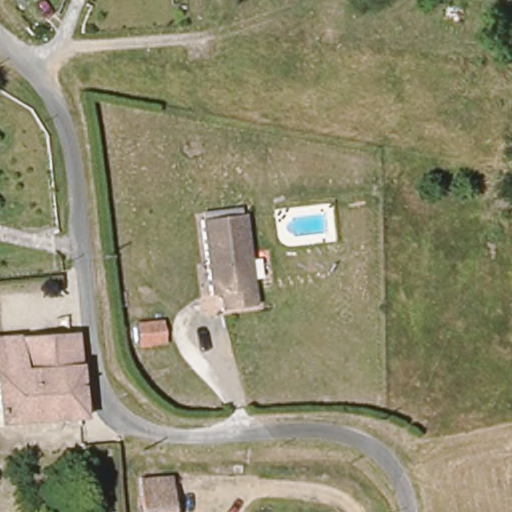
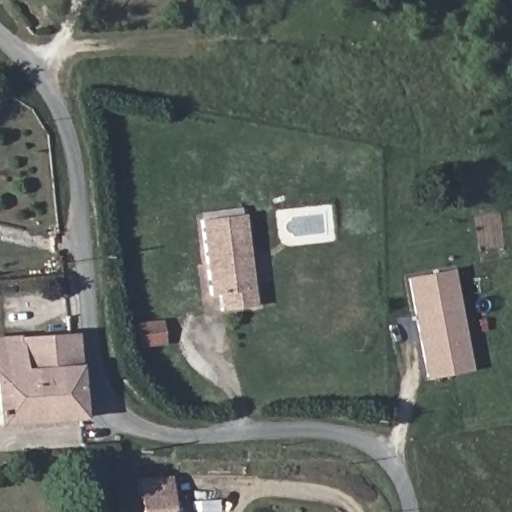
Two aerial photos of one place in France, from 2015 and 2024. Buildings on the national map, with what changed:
unchanged [(252,214),(261,307),(227,309),(227,293),(217,294),(209,218),(252,214)]
new [(472,369),(425,379),(406,279),(453,268),(472,369)]
unchanged [(80,333),(87,417),(3,424),(0,387),(0,338),(80,333)]
unchanged [(140,478),(165,475),(168,512),(143,512),(140,478)]

